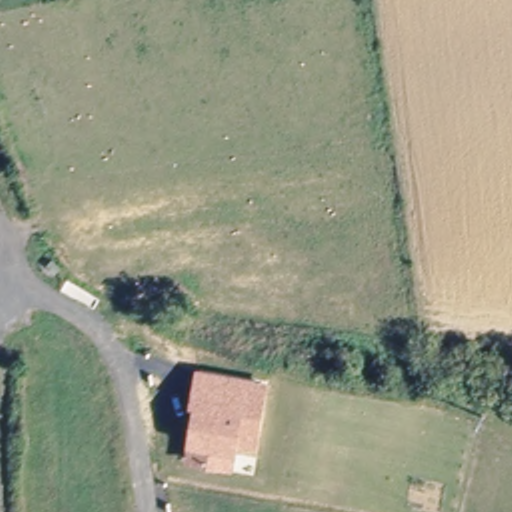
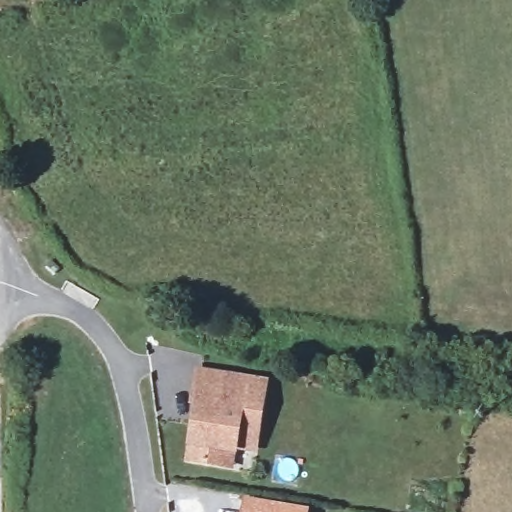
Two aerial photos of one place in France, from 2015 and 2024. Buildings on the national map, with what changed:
unchanged [(261,368),(271,378),(263,452),(242,450),(237,450),(234,471),(184,465),(193,368),(261,368)]
new [(243,495),(310,507),(310,512),(240,512),(243,495)]

